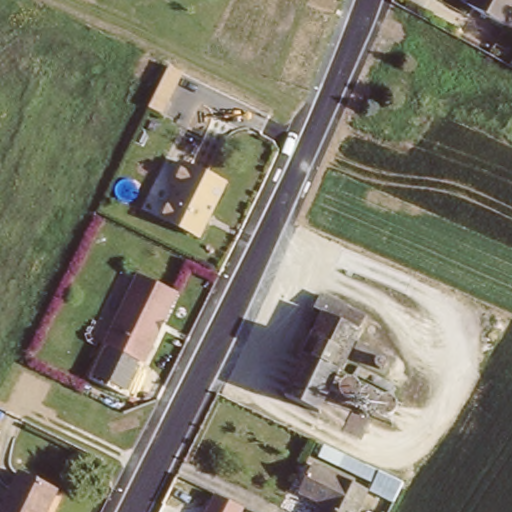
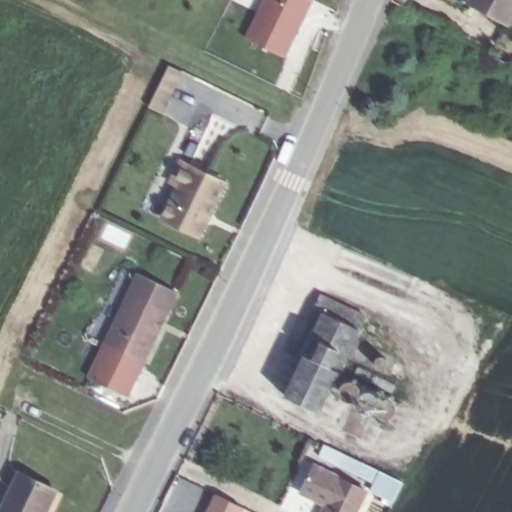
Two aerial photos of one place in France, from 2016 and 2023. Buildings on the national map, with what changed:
new [(267,0),(311,0),(316,2),(287,60),(248,40),(267,0)]
unchanged [(512,16),(509,22),(469,0),(512,0),(512,16)]
new [(169,66),(183,72),(169,100),(156,93),(169,66)]
unchanged [(176,184),(186,163),(230,185),(203,238),(167,220),(183,187),(176,184)]
unchanged [(143,275),(181,294),(156,344),(146,364),(107,344),(118,324),(143,275)]
unchanged [(326,315),(316,310),(324,296),(363,317),(356,330),(360,331),(328,396),(319,413),(285,396),(294,379),(326,315)]
unchanged [(402,482),(393,502),(369,492),(368,491),(335,475),(344,452),(402,482)]
unchanged [(335,475),(368,491),(369,492),(359,512),(326,512),(329,506),(304,493),(318,467),(335,475)]
unchanged [(50,512),(6,512),(24,476),(60,494),(50,512)]
unchanged [(238,512),(210,512),(216,501),(238,512)]

